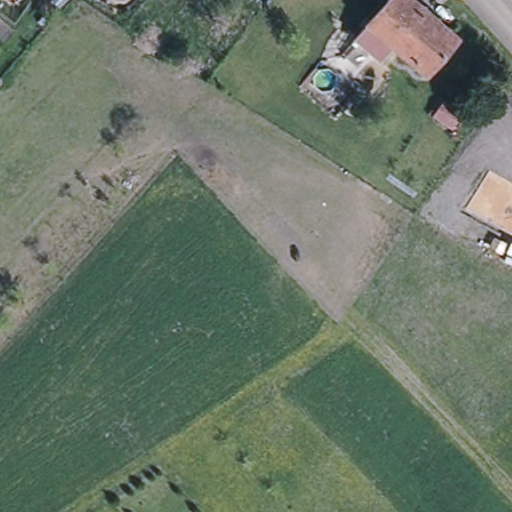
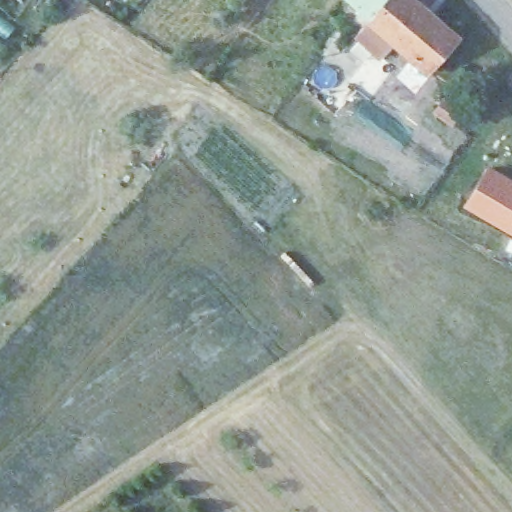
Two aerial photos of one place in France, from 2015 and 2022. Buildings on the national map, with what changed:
unchanged [(419,9),(387,44),(364,23),(385,0),(409,0),(419,9)]
unchanged [(454,41),(423,75),(387,44),(419,9),(454,41)]
unchanged [(462,107),(449,122),(438,111),(451,97),(462,107)]
new [(463,207),(489,166),(512,179),(512,234),(463,207)]

